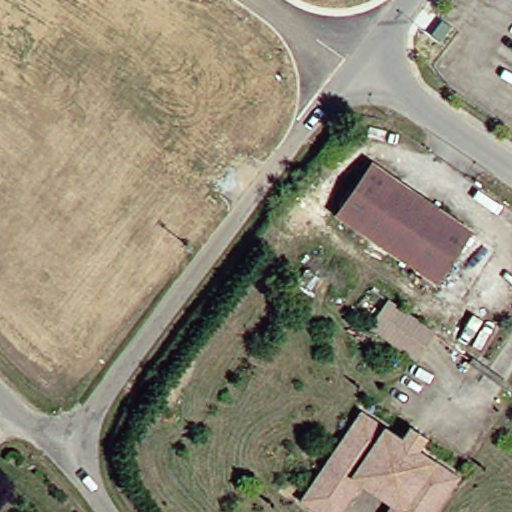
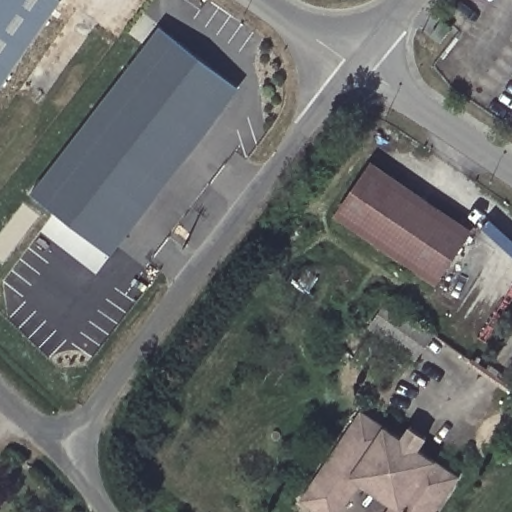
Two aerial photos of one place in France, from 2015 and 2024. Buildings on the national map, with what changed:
new [(0,0),(61,0),(0,87),(0,0)]
new [(222,75),(215,85),(216,95),(228,103),(110,251),(33,191),(160,26),(222,75)]
unchanged [(460,231),(427,280),(326,210),(361,161),(460,231)]
unchanged [(383,298),(425,330),(408,357),(360,325),(383,298)]
unchanged [(357,405),(400,437),(407,428),(421,438),(415,447),(455,476),(429,512),(394,512),(402,500),(355,465),(320,512),(319,512),(293,494),(357,405)]
unchanged [(385,502),(356,481),(334,512),(320,512),(355,465),(402,500),(394,512),(379,512),(385,502)]

